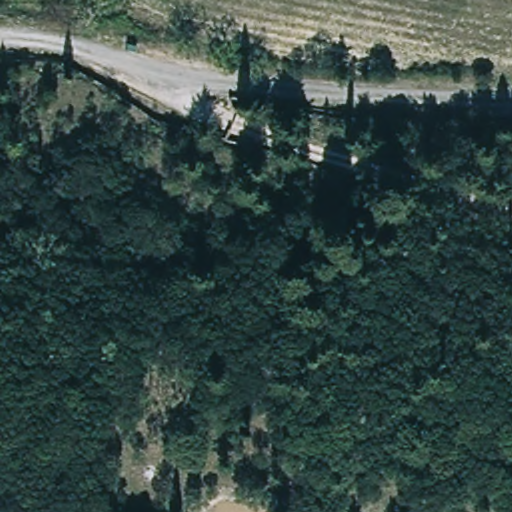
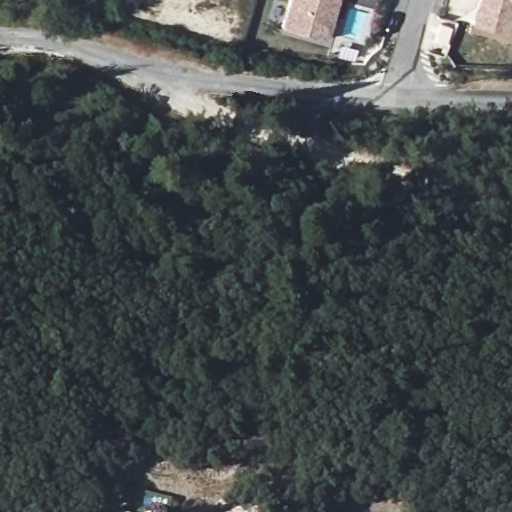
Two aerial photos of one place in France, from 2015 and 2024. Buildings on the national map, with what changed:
new [(289,0),(339,0),(328,40),(282,28),(289,0)]
new [(508,33),(473,24),(479,0),(512,0),(512,18),(508,33)]

